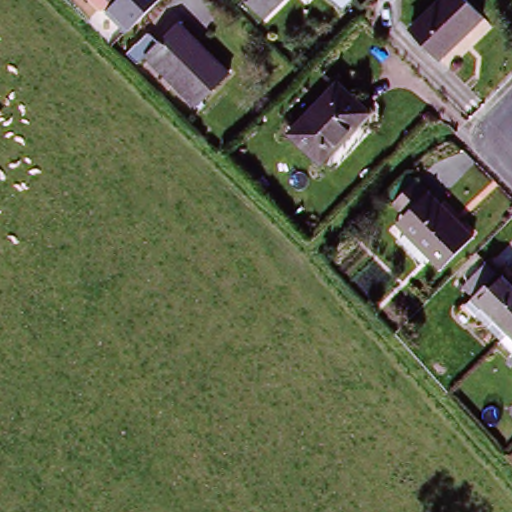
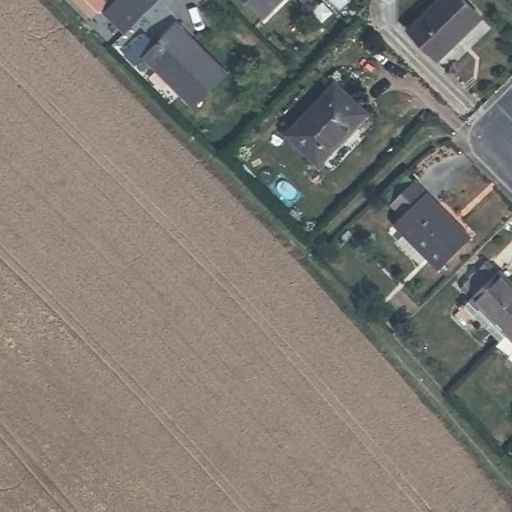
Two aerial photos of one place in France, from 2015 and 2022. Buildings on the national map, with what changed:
unchanged [(138,5),(119,24),(106,12),(115,5),(110,0),(134,0),(138,5)]
unchanged [(260,21),(240,0),(283,0),(260,21)]
unchanged [(445,0),(461,0),(482,20),(439,60),(412,32),(445,0)]
unchanged [(151,39),(157,44),(178,27),(230,78),(197,109),(148,64),(139,73),(128,62),(151,39)]
unchanged [(366,123),(332,156),(298,122),(331,89),(366,123)]
unchanged [(433,269),(423,258),(417,263),(391,236),(406,222),(397,213),(380,193),(403,172),(421,190),(467,238),(433,269)]
unchanged [(497,337),(461,299),(464,295),(453,284),(480,257),(492,268),(497,268),(512,283),(512,322),(497,337)]
unchanged [(497,337),(512,322),(512,353),(497,337)]

